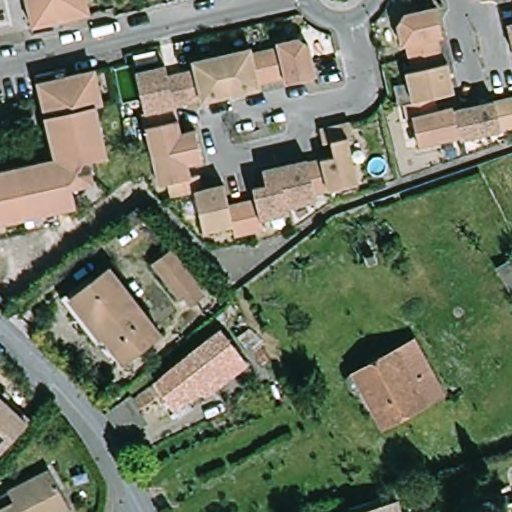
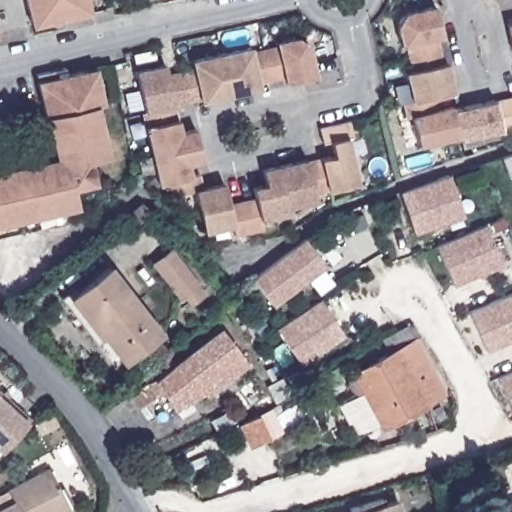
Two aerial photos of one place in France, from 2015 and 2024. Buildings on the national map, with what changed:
unchanged [(35,25),(29,0),(90,0),(93,12),(64,19),(35,25)]
unchanged [(461,138),(460,135),(419,144),(413,115),(408,116),(404,101),(414,100),(407,70),(413,69),(407,41),(403,42),(398,22),(406,11),(437,4),(444,34),(438,35),(444,61),(448,60),(455,90),(435,95),(438,109),(454,105),(455,109),(512,96),(512,127),(461,138)]
unchanged [(510,22),(512,21),(512,33),(510,22)]
unchanged [(358,139),(351,140),(361,186),(333,193),(332,193),(318,196),(320,203),(291,210),(293,215),(264,222),(266,231),(238,238),(235,227),(206,234),(197,193),(174,198),(171,184),(161,186),(146,115),(148,114),(138,72),(168,66),(171,76),(198,70),(196,62),(255,49),(256,55),(282,49),(281,44),(301,40),(313,47),(316,64),(320,78),(290,85),(289,79),(263,85),(264,90),(205,103),(205,101),(178,107),(183,135),(198,131),(206,162),(191,166),(193,179),(201,176),(205,191),(227,186),(231,207),(258,201),(256,190),(269,187),(266,172),(311,162),(311,164),(339,158),(335,144),(327,145),(324,131),(354,125),(358,139)]
unchanged [(98,105),(109,155),(103,157),(89,160),(93,181),(73,186),(77,206),(0,223),(0,169),(55,157),(42,95),(39,81),(68,75),(90,70),(97,68),(105,104),(98,105)]
new [(512,155),(512,174),(508,175),(502,159),(512,155)]
new [(414,234),(400,192),(451,175),(465,216),(414,234)]
new [(455,286),(437,245),(485,224),(503,265),(455,286)]
new [(273,306),(252,279),(304,238),(326,266),(273,306)]
unchanged [(185,298),(160,263),(176,250),(202,286),(185,298)]
demolished [(512,283),(512,284),(497,291),(486,267),(501,260),(512,283)]
unchanged [(69,295),(76,290),(114,262),(163,330),(126,357),(103,326),(95,331),(69,295)]
new [(487,351),(470,311),(512,293),(512,341),(487,351)]
new [(300,365),(276,329),(320,299),(345,335),(300,365)]
unchanged [(113,427),(102,413),(126,394),(128,397),(214,330),(243,360),(199,392),(196,390),(168,406),(156,390),(136,405),(145,418),(118,438),(113,427)]
unchanged [(427,407),(382,431),(354,374),(398,352),(418,341),(428,360),(447,397),(427,407)]
new [(498,376),(512,370),(512,410),(498,376)]
unchanged [(1,447),(0,446),(0,387),(31,413),(1,447)]
unchanged [(0,493),(6,490),(46,470),(66,511),(67,512),(0,512),(0,493)]
unchanged [(397,512),(351,512),(393,500),(397,512)]
unchanged [(512,502),(512,512),(510,512),(507,503),(512,502)]

